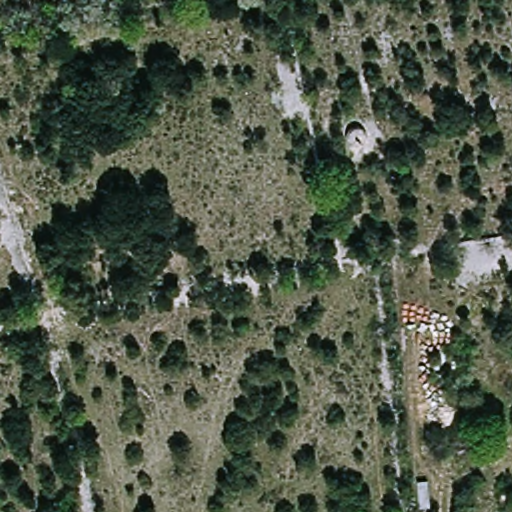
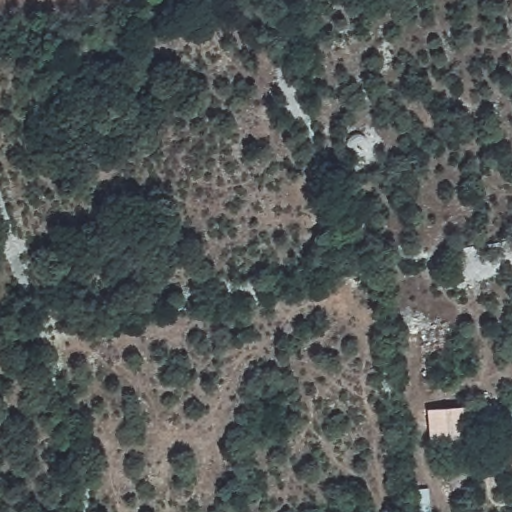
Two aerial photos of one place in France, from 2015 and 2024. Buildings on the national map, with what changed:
new [(425,407),(465,404),(467,436),(427,440),(425,407)]

